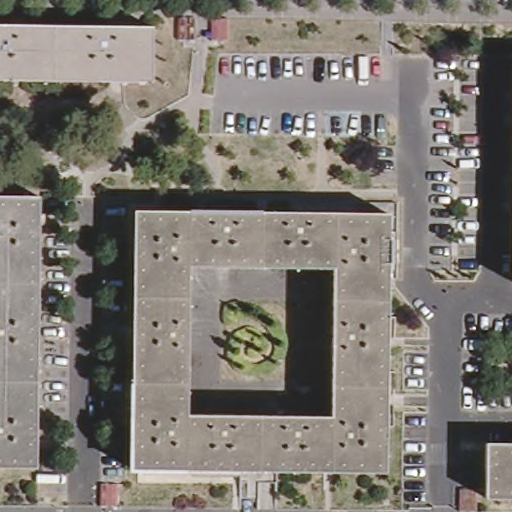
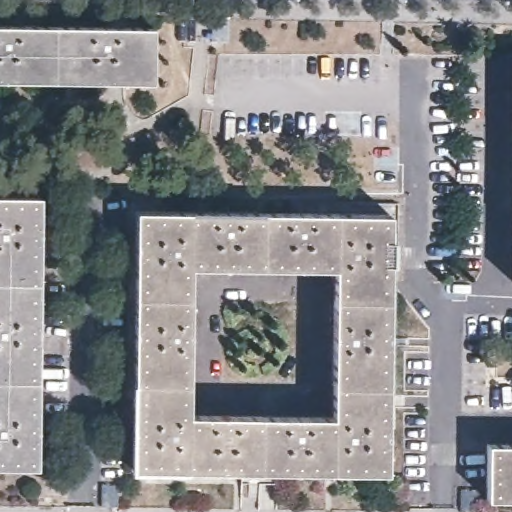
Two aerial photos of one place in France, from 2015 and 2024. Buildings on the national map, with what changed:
unchanged [(157,83),(0,80),(0,26),(158,29),(157,83)]
unchanged [(0,466),(0,196),(45,198),(41,467),(0,466)]
unchanged [(272,209),(394,212),(392,399),(392,466),(138,464),(141,207),(272,209)]
unchanged [(482,500),(481,444),(512,444),(512,500),(482,500)]

